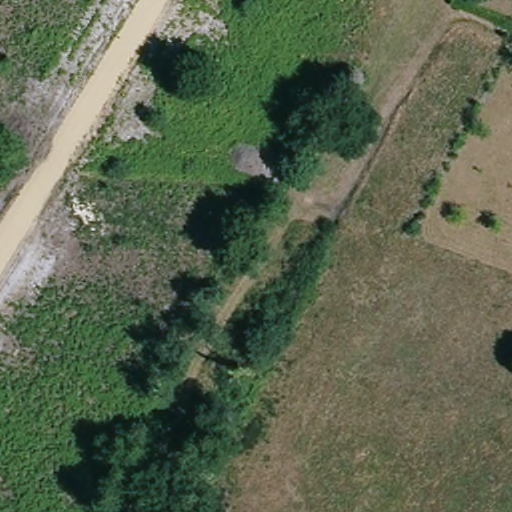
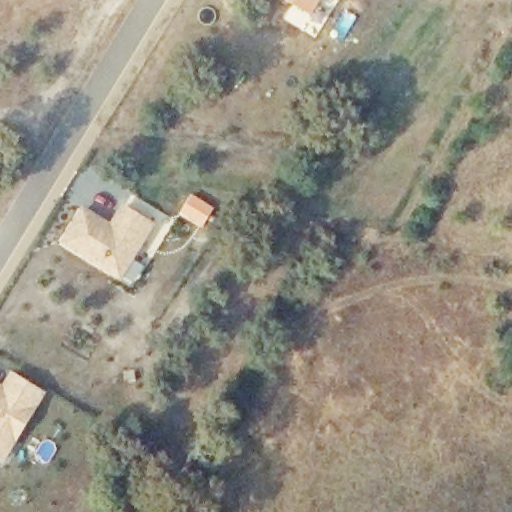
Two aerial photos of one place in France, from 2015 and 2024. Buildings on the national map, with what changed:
new [(284,0),(320,0),(311,15),(284,0)]
new [(121,281),(59,242),(82,206),(109,222),(122,203),(155,225),(121,281)]
new [(2,385),(11,372),(47,391),(2,464),(0,462),(0,383),(2,385)]

